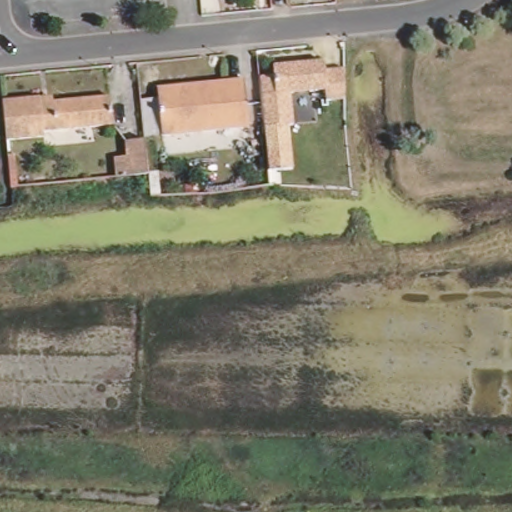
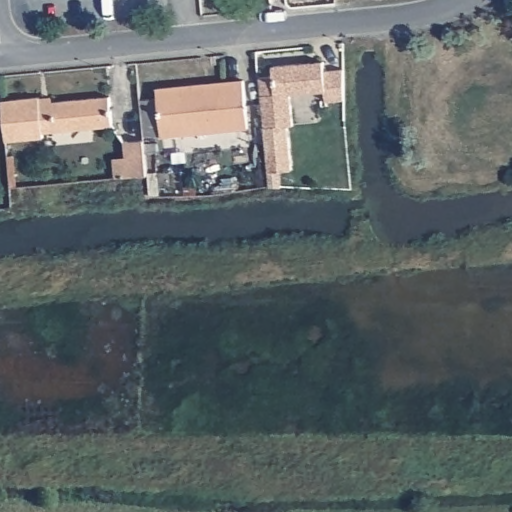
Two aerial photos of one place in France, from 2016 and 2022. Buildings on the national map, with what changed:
unchanged [(268,169),(259,74),(272,72),(272,63),(324,60),(324,69),(344,67),(345,97),(326,98),(327,89),(291,90),(294,122),(288,122),(293,167),(268,169)]
unchanged [(251,129),(205,134),(201,87),(245,82),(251,129)]
unchanged [(205,134),(165,138),(161,91),(201,87),(205,134)]
unchanged [(48,135),(48,140),(8,143),(4,102),(43,99),(55,98),(56,106),(73,104),(76,133),(48,135)]
unchanged [(113,130),(76,133),(73,104),(110,101),(113,130)]
unchanged [(146,172),(128,175),(124,141),(142,139),(146,172)]

